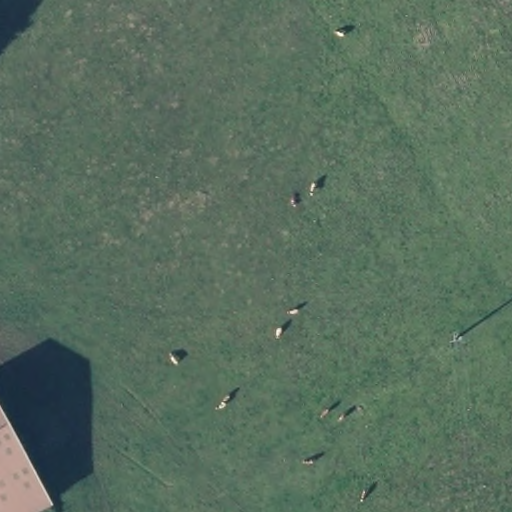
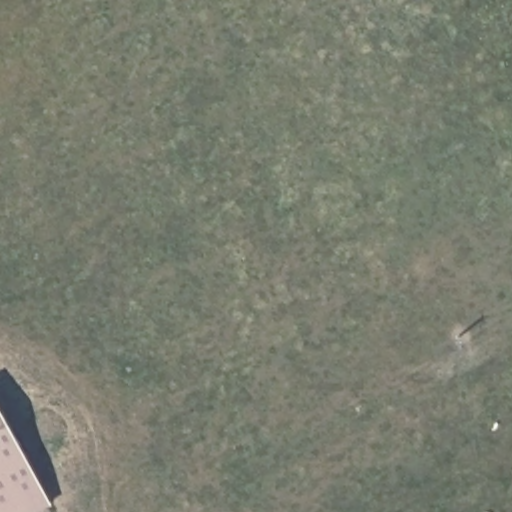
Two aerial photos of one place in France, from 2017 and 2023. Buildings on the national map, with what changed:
unchanged [(50,507),(39,512),(15,512),(0,480),(0,395),(50,507)]
unchanged [(15,512),(0,512),(0,480),(15,512)]

